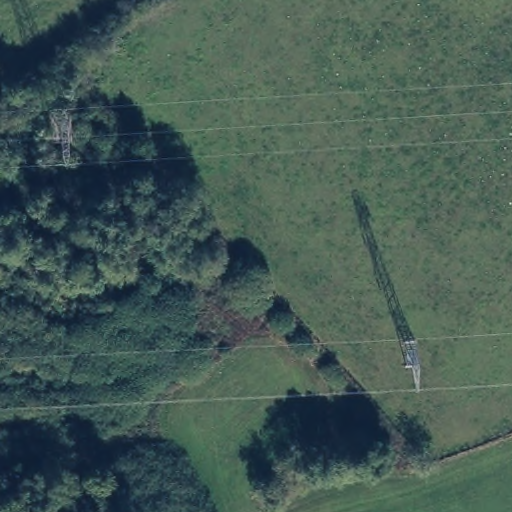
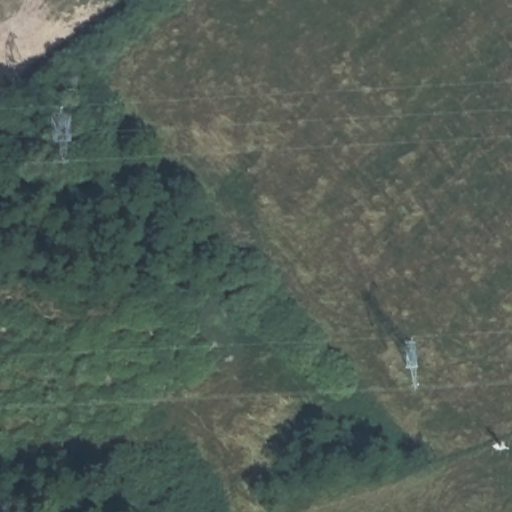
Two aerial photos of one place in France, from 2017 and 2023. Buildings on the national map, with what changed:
unchanged [(75,144),(50,145),(48,110),(74,107),(75,144)]

